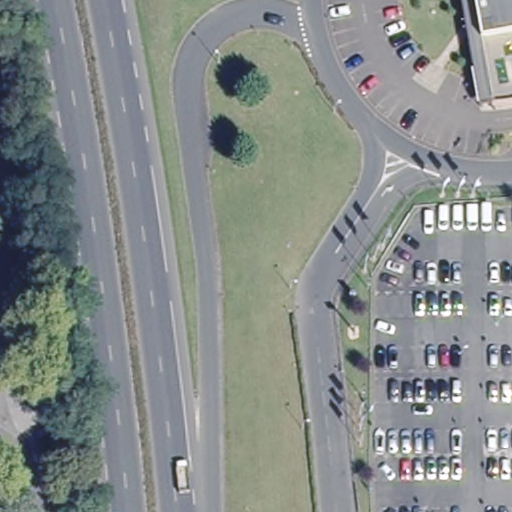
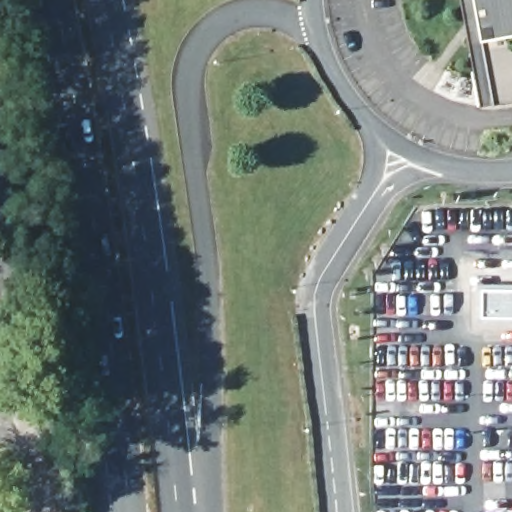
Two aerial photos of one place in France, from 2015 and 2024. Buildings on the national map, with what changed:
unchanged [(478,107),(459,0),(470,0),(489,105),(478,107)]
unchanged [(470,0),(512,0),(512,102),(507,103),(489,105),(470,0)]
new [(512,285),(512,323),(476,323),(476,285),(512,285)]

